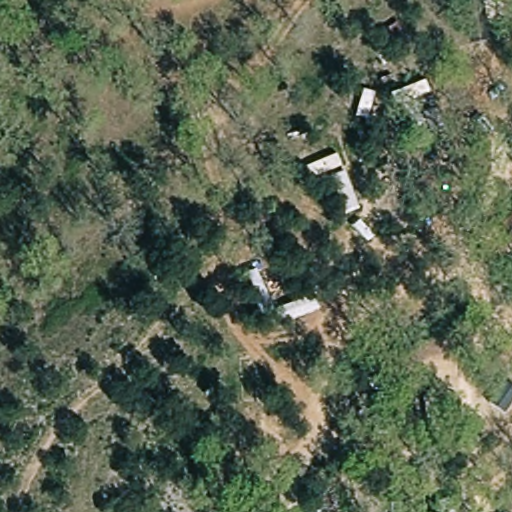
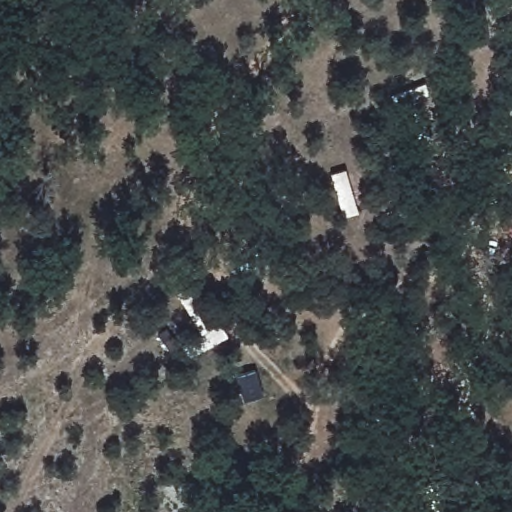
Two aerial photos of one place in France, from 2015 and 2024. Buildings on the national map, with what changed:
unchanged [(512,207),(512,245),(495,226),(512,207)]

